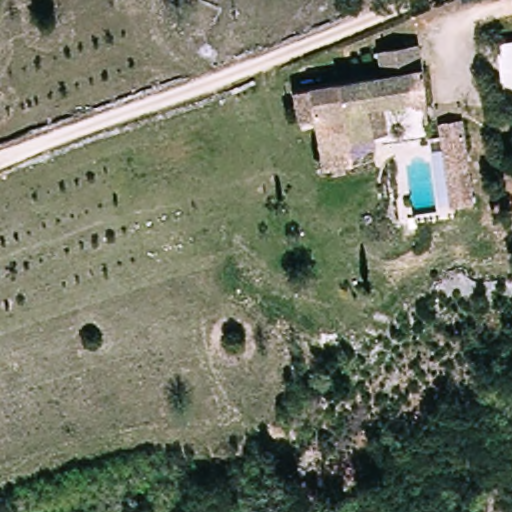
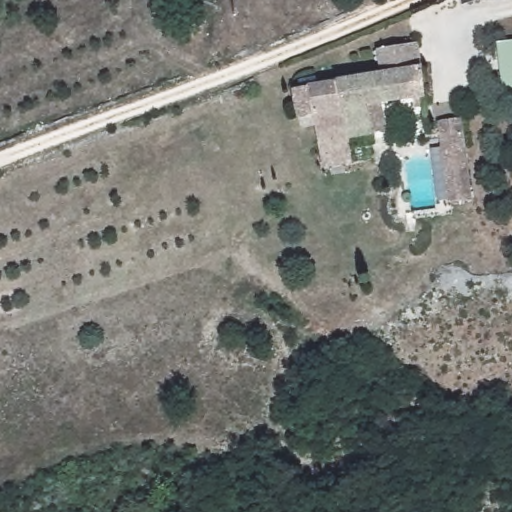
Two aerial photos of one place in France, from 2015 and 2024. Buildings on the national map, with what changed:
unchanged [(305,169),(290,90),(366,73),(367,56),(404,51),(405,74),(417,73),(420,99),(370,111),(370,139),(338,140),(341,174),(305,169)]
unchanged [(448,201),(438,120),(463,116),(473,198),(448,201)]

